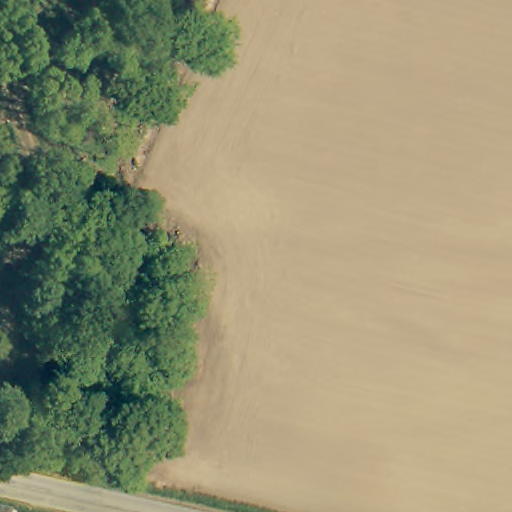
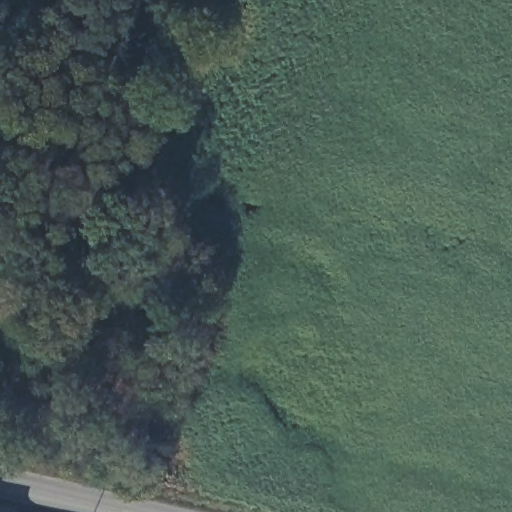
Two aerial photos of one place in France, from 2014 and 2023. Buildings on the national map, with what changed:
unchanged [(10,504),(9,511),(12,512),(0,512),(0,502),(10,504)]

